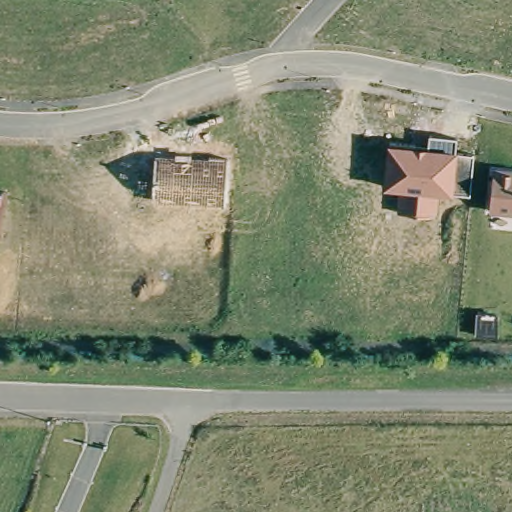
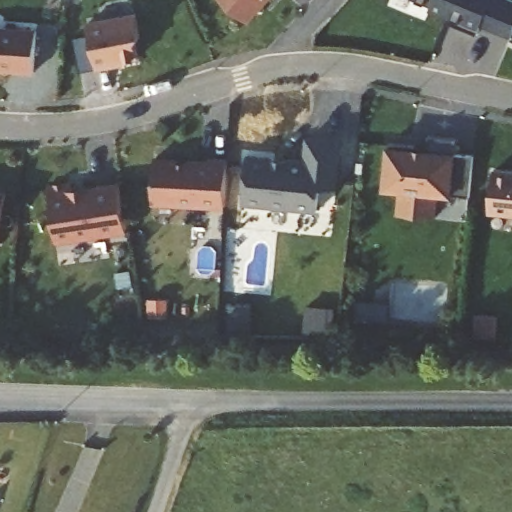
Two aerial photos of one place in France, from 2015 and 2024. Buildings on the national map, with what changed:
new [(249,22),(223,0),(268,0),(249,22)]
new [(480,21),(463,13),(460,18),(423,0),(490,0),(480,21)]
new [(140,36),(136,42),(139,60),(125,62),(126,66),(97,69),(88,21),(136,13),(140,36)]
new [(34,74),(0,71),(0,26),(37,29),(34,74)]
unchanged [(427,151),(429,135),(457,139),(456,154),(474,157),(470,195),(454,194),(453,199),(437,197),(434,217),(397,212),(398,192),(383,191),(388,146),(427,151)]
new [(302,167),(305,141),(341,146),(337,199),(318,196),(316,219),(242,210),(247,160),(302,167)]
unchanged [(176,157),(176,154),(193,155),(192,158),(206,159),(207,156),(227,157),(226,203),(150,199),(153,157),(176,157)]
unchanged [(490,179),(512,181),(512,222),(487,220),(490,179)]
new [(71,182),(73,189),(120,182),(128,234),(57,244),(48,186),(71,182)]
unchanged [(7,194),(0,231),(0,193),(7,194)]

